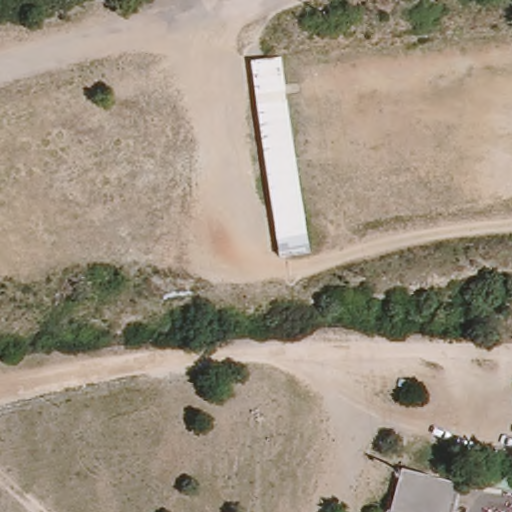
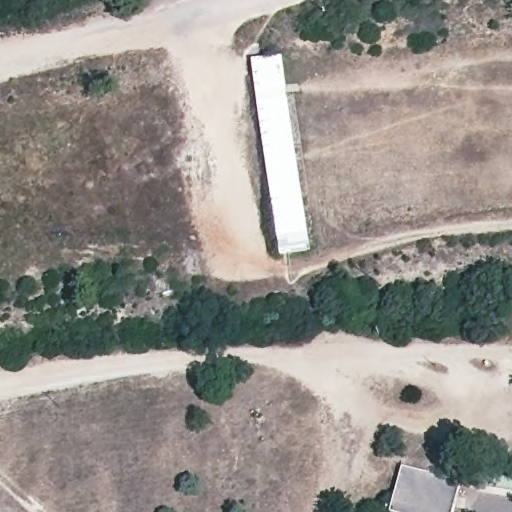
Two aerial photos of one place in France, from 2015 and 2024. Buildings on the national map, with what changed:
unchanged [(313,247),(285,251),(258,62),(285,58),(313,247)]
unchanged [(394,512),(403,470),(457,480),(451,512),(394,512)]

